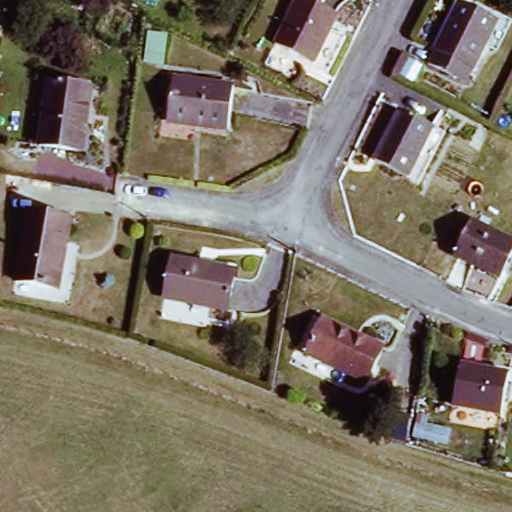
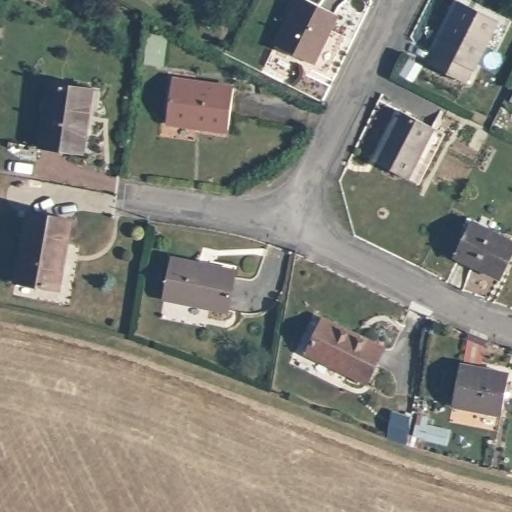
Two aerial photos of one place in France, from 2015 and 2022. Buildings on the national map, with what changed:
unchanged [(296,0),(316,0),(338,10),(315,60),(276,43),(296,0)]
unchanged [(457,0),(496,19),(465,83),(426,64),(457,0)]
unchanged [(167,34),(163,62),(146,59),(150,32),(167,34)]
unchanged [(91,87),(83,150),(41,144),(49,82),(91,87)]
unchanged [(226,133),(165,125),(170,83),(231,91),(226,133)]
unchanged [(410,175),(376,159),(401,107),(435,124),(410,175)]
unchanged [(18,281),(28,211),(71,217),(60,287),(18,281)]
unchanged [(512,240),(512,248),(497,277),(452,254),(470,219),(512,240)]
unchanged [(165,295),(170,257),(232,265),(228,302),(165,295)]
unchanged [(329,321),(387,349),(370,383),(312,355),(329,321)]
unchanged [(457,365),(505,374),(497,412),(450,404),(457,365)]

